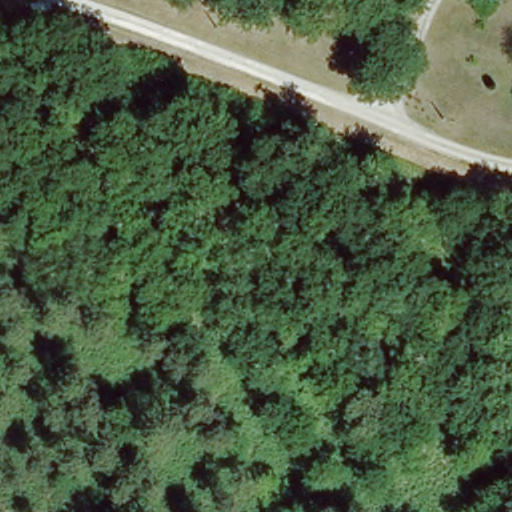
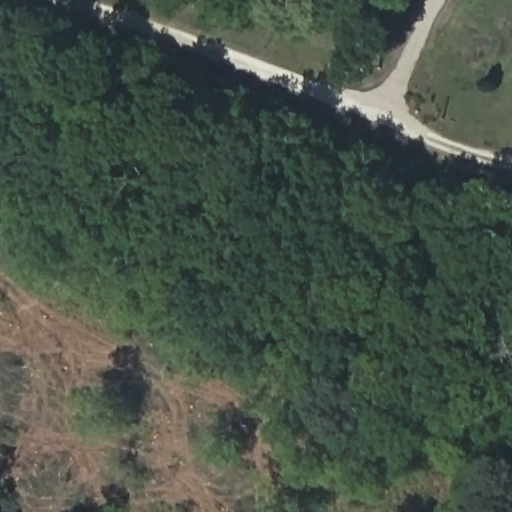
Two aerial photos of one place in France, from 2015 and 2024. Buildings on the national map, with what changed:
unchanged [(510,226),(511,242),(485,245),(483,229),(510,226)]

